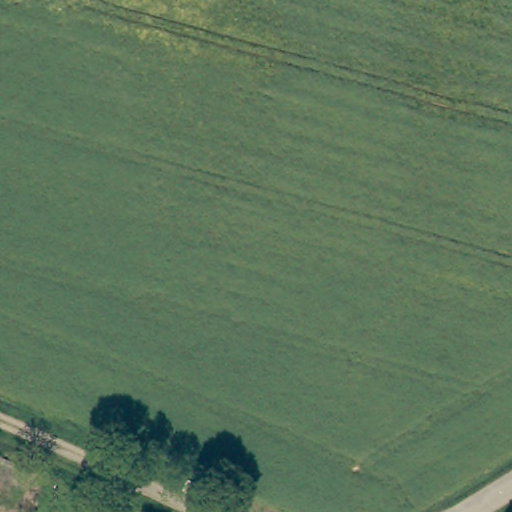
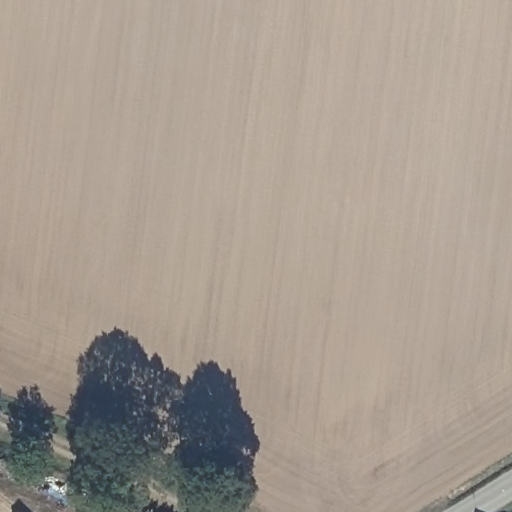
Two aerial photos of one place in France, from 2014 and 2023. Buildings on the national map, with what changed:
[]

